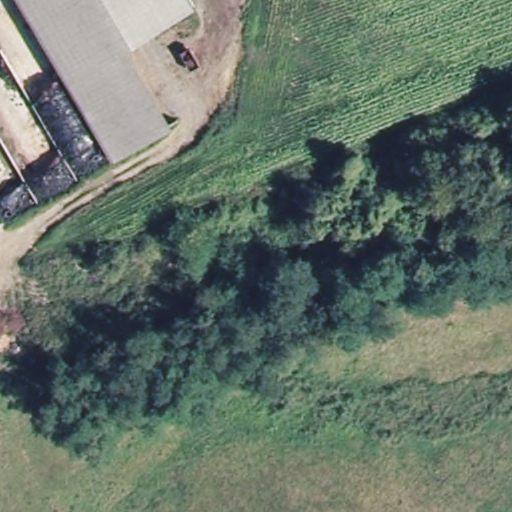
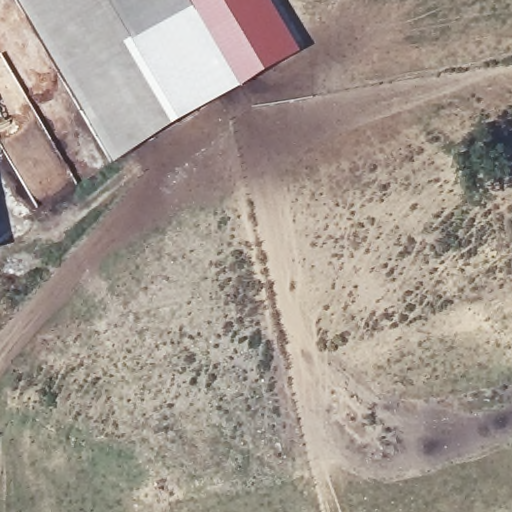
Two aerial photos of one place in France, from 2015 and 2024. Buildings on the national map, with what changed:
unchanged [(144,43),(181,107),(126,141),(104,154),(12,0),(188,0),(195,11),(144,43)]
new [(113,166),(104,154),(126,141),(181,107),(144,43),(195,11),(188,0),(267,0),(300,56),(113,166)]

